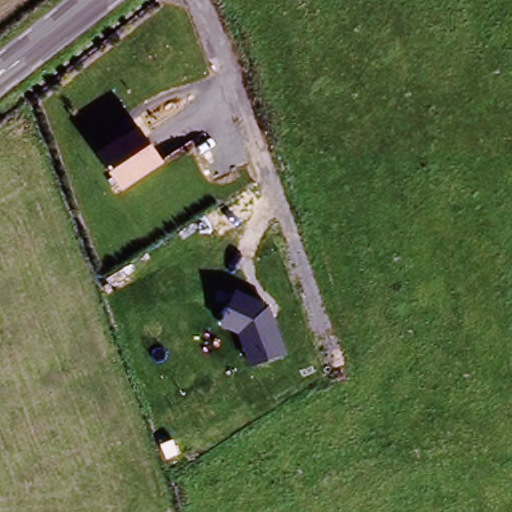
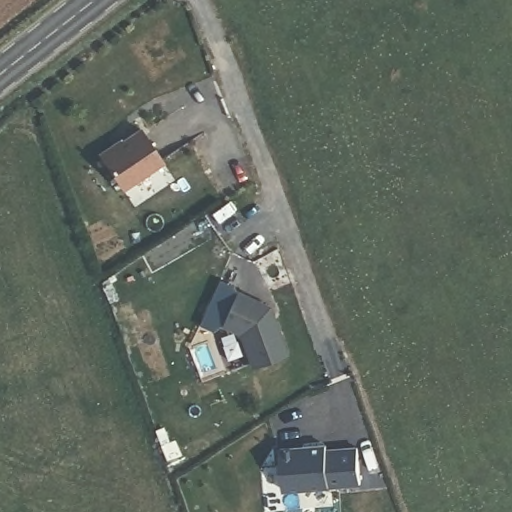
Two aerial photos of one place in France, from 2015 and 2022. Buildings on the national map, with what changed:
unchanged [(140,127),(162,164),(118,193),(94,152),(140,127)]
new [(222,327),(212,331),(199,324),(219,279),(234,285),(236,290),(222,327)]
unchanged [(269,306),(285,354),(250,365),(240,334),(222,327),(236,290),(269,306)]
new [(360,485),(282,491),(280,447),(327,442),(327,448),(357,446),(360,485)]

